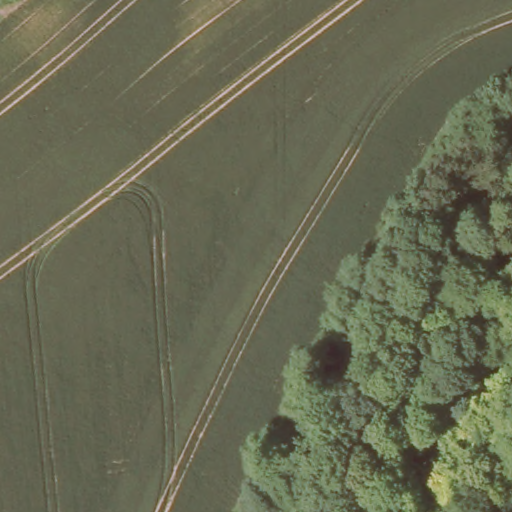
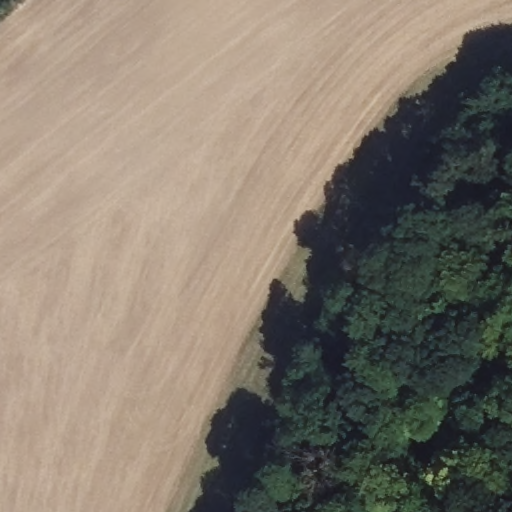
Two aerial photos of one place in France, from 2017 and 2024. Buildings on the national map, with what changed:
unchanged [(502,299),(512,280),(512,305),(502,299)]

